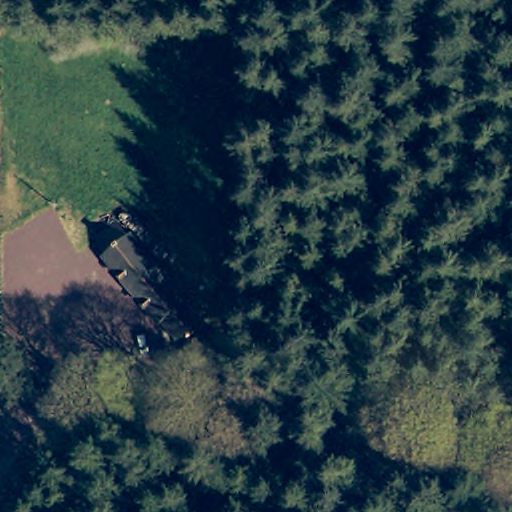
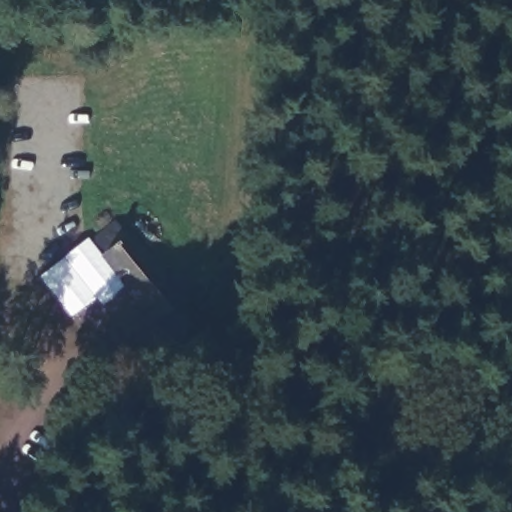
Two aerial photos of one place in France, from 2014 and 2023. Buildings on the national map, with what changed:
new [(114,219),(126,235),(99,257),(125,287),(102,306),(94,297),(72,316),(40,277),(114,219)]
unchanged [(130,232),(182,296),(194,286),(204,297),(193,309),(215,336),(184,361),(99,257),(130,232)]
unchanged [(107,402),(106,378),(159,380),(159,404),(107,402)]

